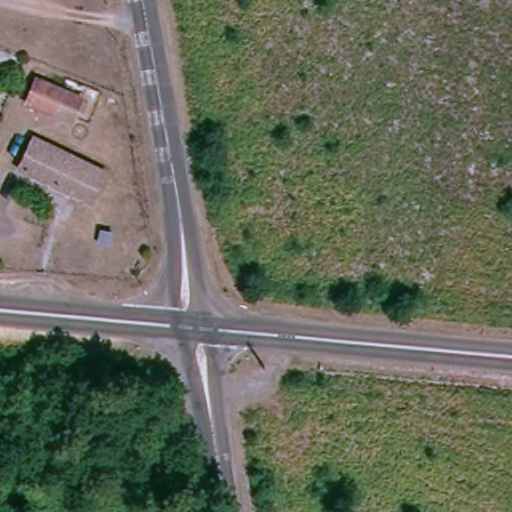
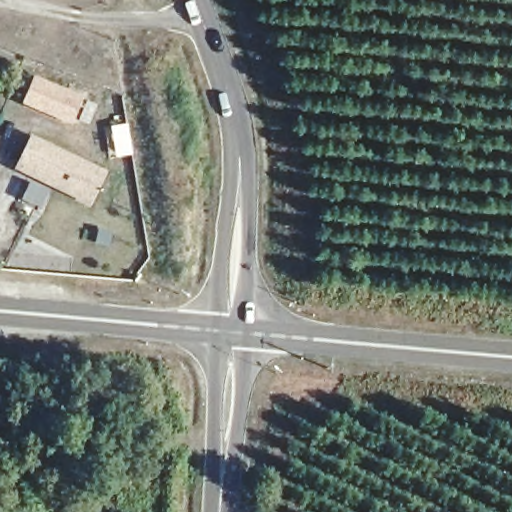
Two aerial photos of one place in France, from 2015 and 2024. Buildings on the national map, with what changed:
unchanged [(71,120),(26,102),(35,78),(81,96),(71,120)]
unchanged [(103,172),(89,202),(18,167),(32,137),(103,172)]

